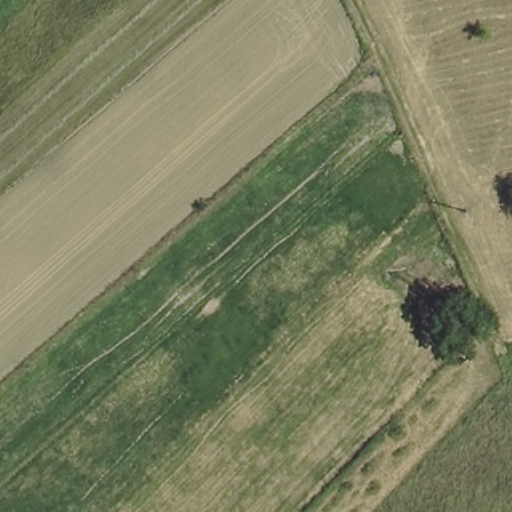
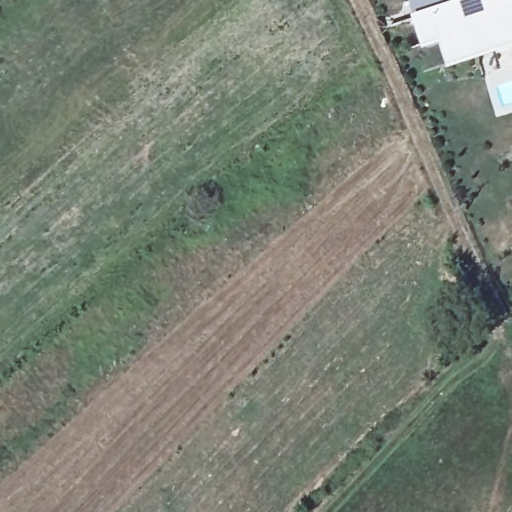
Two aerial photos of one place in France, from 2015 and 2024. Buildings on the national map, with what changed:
new [(450,67),(443,44),(425,49),(414,15),(460,0),(512,0),(512,48),(450,67)]

